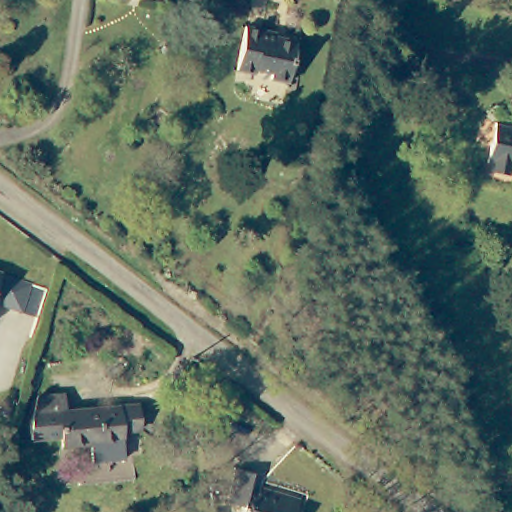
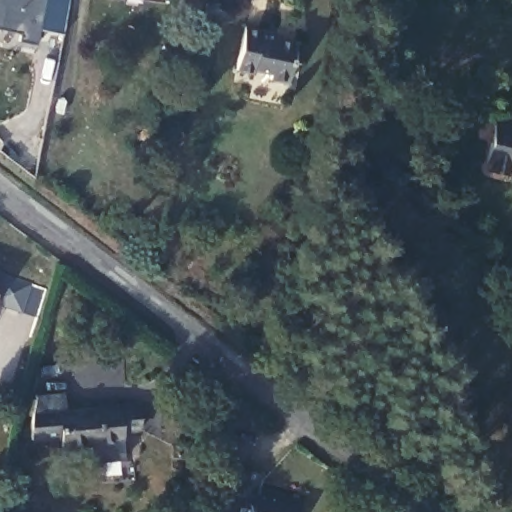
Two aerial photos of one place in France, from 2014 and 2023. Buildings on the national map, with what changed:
new [(40,28),(36,43),(20,39),(21,32),(0,27),(0,0),(69,0),(62,33),(40,28)]
unchanged [(271,30),(271,37),(294,41),(286,82),(263,79),(264,74),(235,69),(243,25),(271,30)]
unchanged [(510,163),(509,173),(491,170),(492,163),(488,163),(495,120),(512,123),(512,163),(510,163)]
unchanged [(18,308),(0,303),(0,267),(29,277),(18,308)]
unchanged [(115,427),(115,439),(54,444),(52,436),(19,435),(19,428),(29,406),(29,392),(54,391),(54,406),(126,404),(127,426),(115,427)]
unchanged [(253,470),(248,487),(259,491),(261,484),(299,498),(295,512),(239,512),(241,504),(226,499),(238,464),(253,470)]

